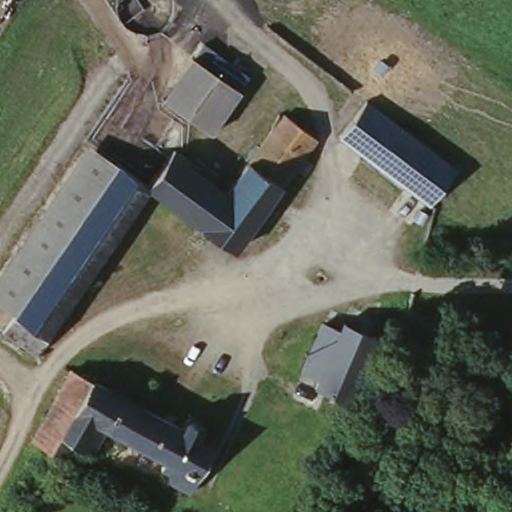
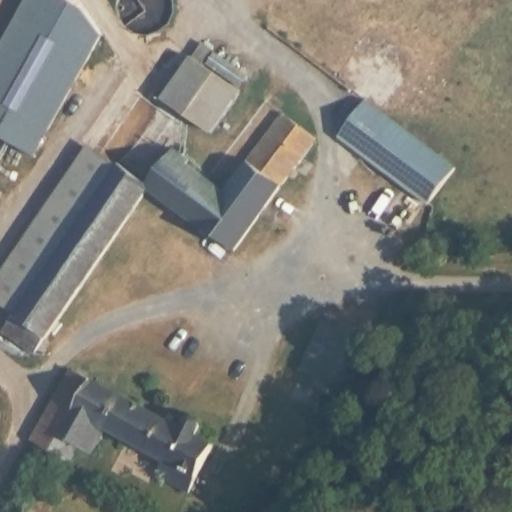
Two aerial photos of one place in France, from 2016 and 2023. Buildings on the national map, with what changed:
new [(101,40),(36,156),(0,137),(0,51),(28,0),(62,0),(85,14),(101,40)]
demolished [(275,54),(272,59),(253,46),(271,22),(359,90),(346,107),(275,54)]
unchanged [(190,53),(238,84),(210,127),(162,96),(190,53)]
demolished [(275,98),(288,107),(282,115),(269,106),(275,98)]
unchanged [(461,169),(433,207),(340,141),(369,101),(461,169)]
unchanged [(318,141),(238,252),(154,191),(38,360),(1,335),(14,320),(94,205),(121,167),(146,183),(173,147),(193,162),(190,165),(230,195),(284,117),(318,141)]
unchanged [(14,320),(0,310),(0,274),(89,146),(121,167),(94,205),(14,320)]
unchanged [(328,396),(297,381),(300,374),(323,325),(327,317),(359,333),(328,396)]
unchanged [(169,428),(178,419),(197,430),(190,439),(203,447),(178,491),(156,481),(163,470),(155,465),(160,458),(106,427),(101,437),(98,437),(94,442),(85,437),(75,454),(36,430),(73,368),(169,428)]

